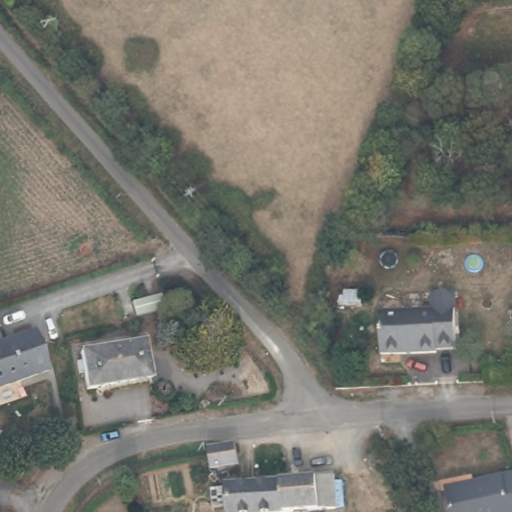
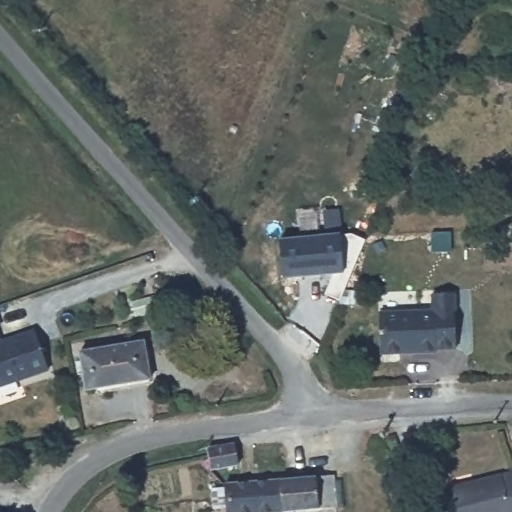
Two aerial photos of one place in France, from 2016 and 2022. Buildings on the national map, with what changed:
new [(340,235),(348,232),(366,238),(339,301),(326,295),(332,274),(285,279),(280,238),(339,233),(340,235)]
unchanged [(453,354),(381,358),(380,318),(432,316),(432,297),(451,298),(453,354)]
unchanged [(49,369),(0,386),(0,340),(34,329),(49,369)]
unchanged [(146,339),(154,380),(88,392),(80,352),(146,339)]
unchanged [(236,469),(212,472),(210,452),(235,448),(236,469)]
unchanged [(447,486),(512,469),(512,512),(455,512),(447,486)]
unchanged [(345,475),(347,496),(335,497),(336,512),(284,512),(281,482),(345,475)]
unchanged [(281,482),(284,512),(227,512),(223,487),(281,482)]

